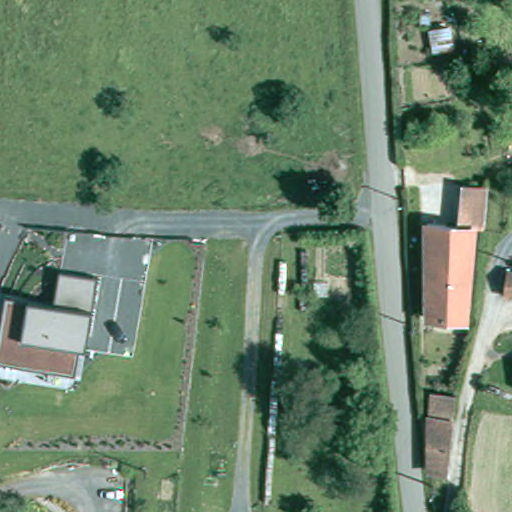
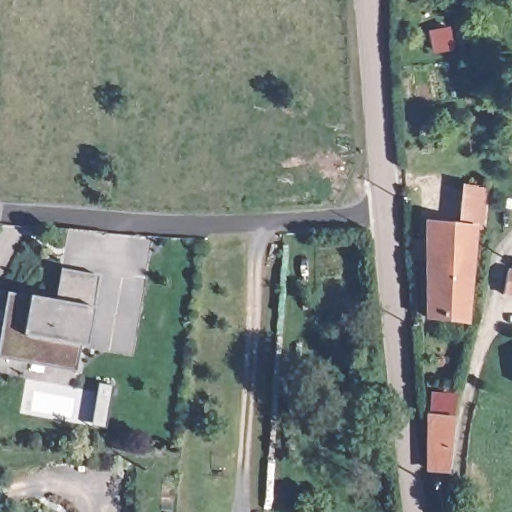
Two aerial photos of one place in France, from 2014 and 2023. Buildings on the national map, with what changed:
unchanged [(438,52),(433,34),(451,29),(457,47),(438,52)]
unchanged [(480,235),(472,326),(429,322),(433,228),(464,230),(466,189),(490,191),(488,231),(487,235),(480,235)]
unchanged [(54,301),(60,270),(98,276),(84,348),(80,348),(76,373),(65,387),(0,376),(0,292),(54,301)]
unchanged [(508,271),(512,271),(512,294),(510,295),(508,271)]
unchanged [(430,458),(433,415),(435,393),(454,395),(454,416),(451,428),(449,466),(431,466),(430,458)]

